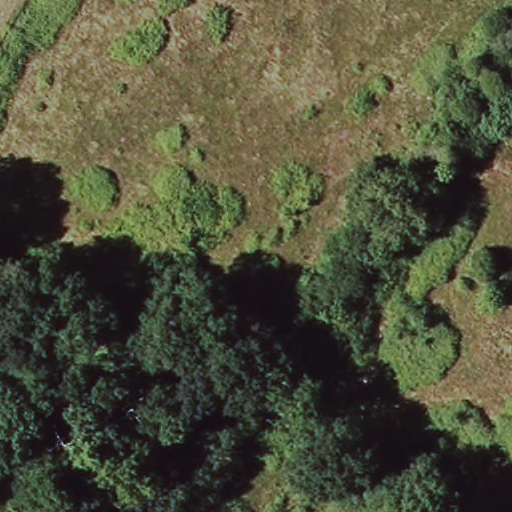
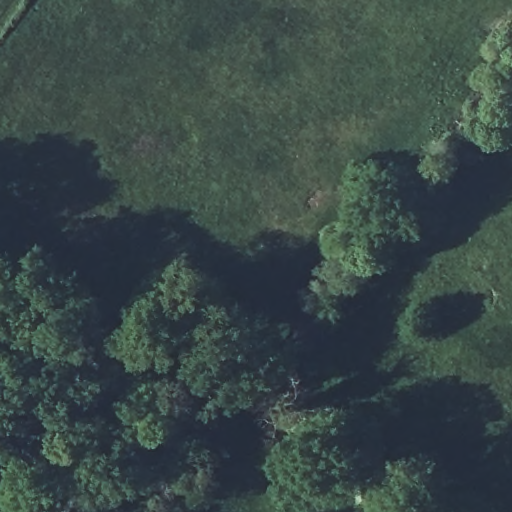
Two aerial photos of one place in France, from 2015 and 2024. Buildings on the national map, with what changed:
[]

